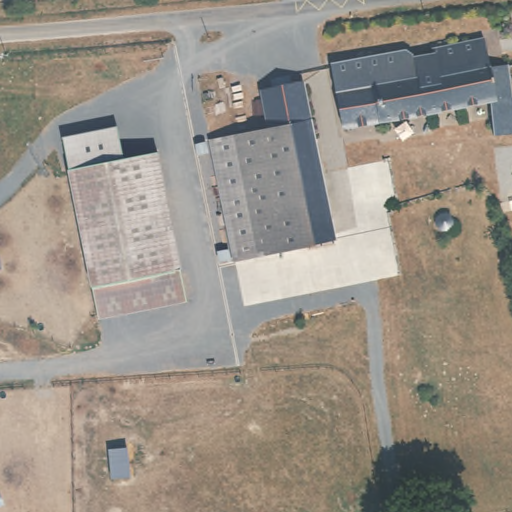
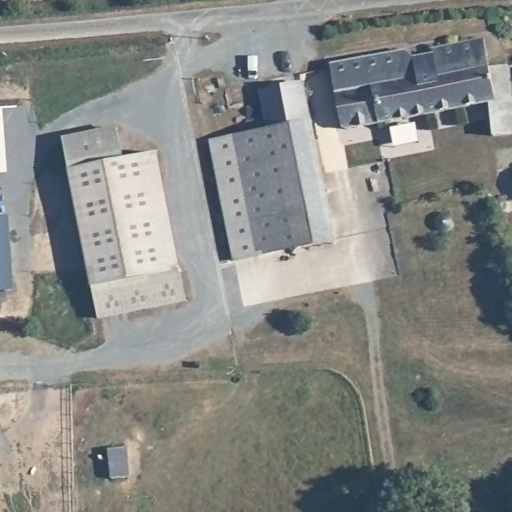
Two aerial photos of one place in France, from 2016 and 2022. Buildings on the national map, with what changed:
unchanged [(435,46),(481,39),(486,69),(505,66),(511,99),(512,98),(512,132),(499,135),(493,105),(349,127),(337,61),(413,49),(415,60),(437,56),(435,46)]
unchanged [(304,81),(333,239),(297,247),(274,130),(269,131),(268,126),(261,88),(304,81)]
unchanged [(269,131),(274,130),(297,247),(235,260),(211,137),(268,126),(269,131)]
unchanged [(69,170),(157,153),(180,270),(92,288),(69,170)]
new [(14,292),(0,293),(0,217),(9,217),(14,292)]
unchanged [(445,217),(445,231),(441,231),(439,230),(436,229),(434,226),(434,223),(435,220),(438,218),(441,217),(445,217)]
unchanged [(180,270),(186,304),(98,321),(92,288),(180,270)]

